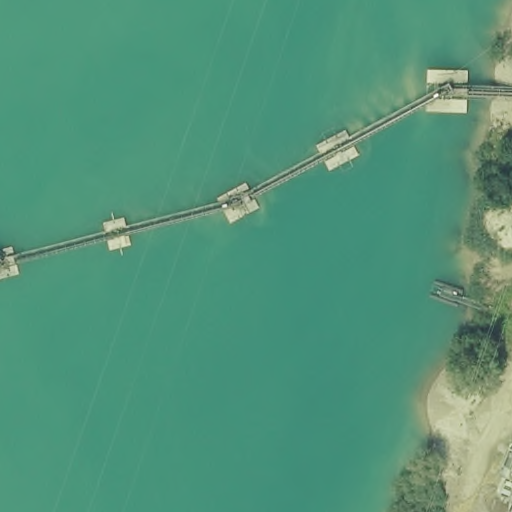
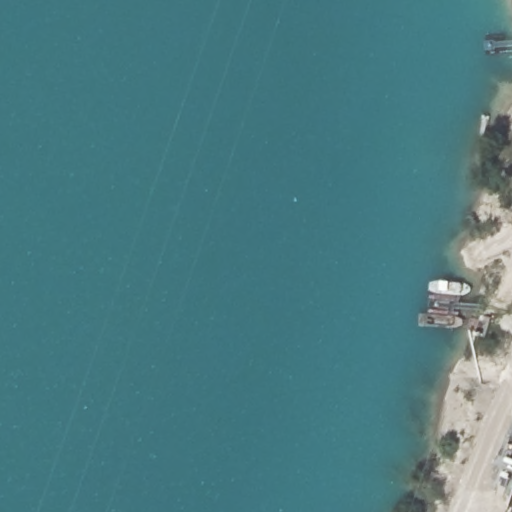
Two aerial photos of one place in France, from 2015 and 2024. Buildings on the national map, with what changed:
unchanged [(512,496),(511,498),(498,492),(507,471),(502,468),(511,443),(512,443),(512,496)]
unchanged [(512,498),(511,498),(512,496),(512,498)]

